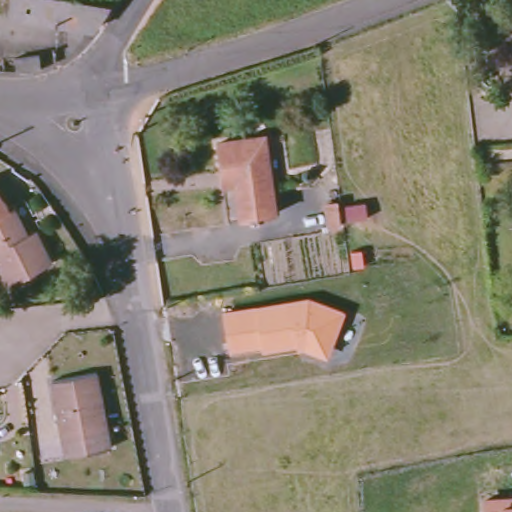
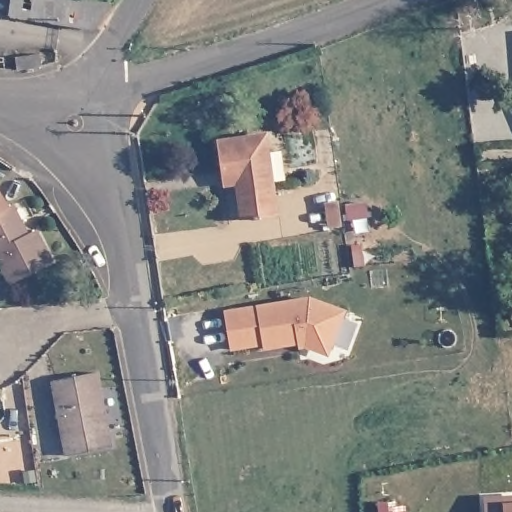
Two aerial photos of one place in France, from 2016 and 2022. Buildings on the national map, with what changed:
unchanged [(98,34),(13,19),(16,0),(70,0),(114,6),(98,34)]
unchanged [(12,66),(36,63),(38,71),(38,74),(14,78),(12,66)]
unchanged [(225,169),(223,135),(270,133),(278,214),(246,217),(244,184),(226,185),(225,169)]
unchanged [(10,213),(15,210),(30,239),(38,235),(53,266),(13,286),(0,262),(0,194),(9,210),(10,213)]
unchanged [(309,299),(344,312),(327,359),(300,349),(261,354),(261,351),(231,355),(224,313),(309,299)]
unchanged [(100,379),(110,438),(65,446),(65,444),(63,429),(64,429),(60,404),(58,405),(55,387),(100,379)]
unchanged [(486,499),(512,499),(512,512),(486,512),(486,499)]

